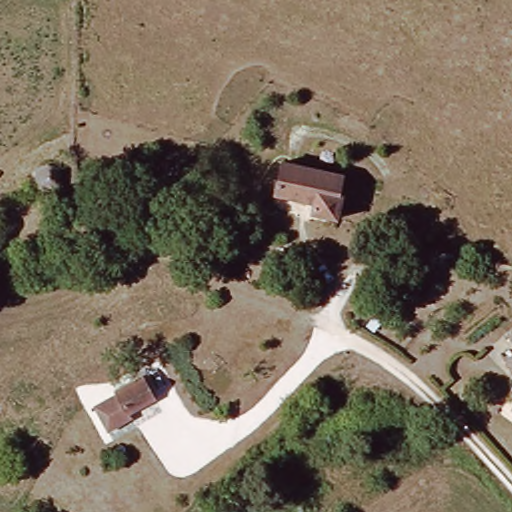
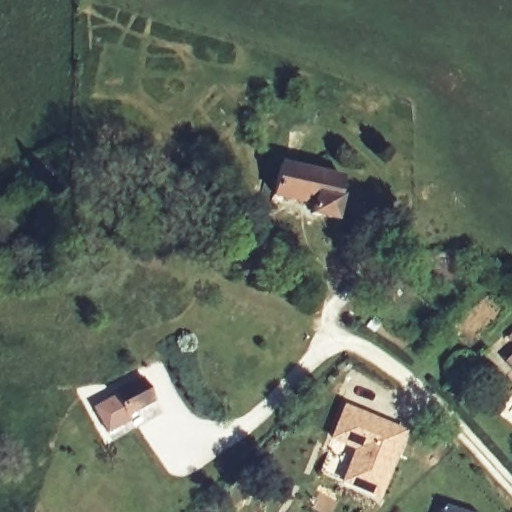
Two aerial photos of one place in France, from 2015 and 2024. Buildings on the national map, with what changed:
unchanged [(272,200),(279,163),(305,167),(302,205),(272,200)]
unchanged [(309,206),(302,205),(305,167),(343,175),(339,198),(342,199),(337,217),(308,212),(309,206)]
unchanged [(64,188),(57,195),(46,194),(38,188),(37,183),(38,177),(42,173),(47,170),(55,170),(62,177),(64,188)]
unchanged [(512,334),(512,339),(510,337),(512,334)]
unchanged [(512,355),(512,363),(509,359),(512,355)]
unchanged [(124,424),(103,433),(90,407),(114,396),(144,381),(155,405),(125,418),(122,420),(124,424)]
new [(350,407),(410,434),(381,499),(347,483),(362,450),(337,439),(350,407)]
new [(459,512),(447,512),(449,509),(459,512)]

